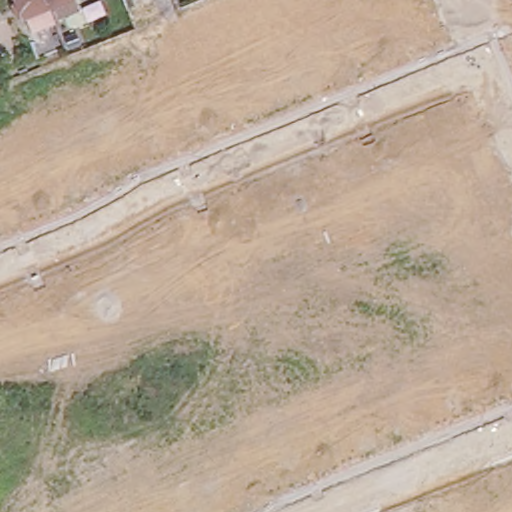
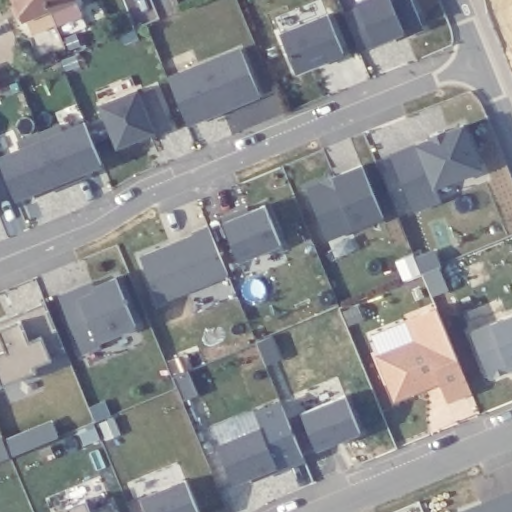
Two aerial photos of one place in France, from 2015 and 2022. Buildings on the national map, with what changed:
unchanged [(24,14),(25,17),(22,19),(15,0),(46,0),(48,4),(24,14)]
unchanged [(46,0),(57,0),(48,4),(46,0)]
new [(397,40),(395,36),(374,44),(373,46),(360,51),(344,10),(356,1),(360,0),(412,0),(424,29),(397,40)]
new [(344,53),(296,73),(279,33),(326,13),(344,53)]
new [(260,96),(188,126),(168,77),(238,46),(260,96)]
new [(84,124),(103,117),(98,102),(138,87),(139,91),(155,86),(172,128),(158,134),(144,139),(143,137),(116,149),(111,135),(93,142),(101,164),(84,171),(87,177),(35,198),(33,193),(17,199),(0,163),(0,155),(82,120),(84,124)]
new [(483,169),(436,188),(441,201),(414,212),(389,151),(414,141),(463,121),(483,169)]
new [(384,215),(328,239),(304,187),(361,164),(384,215)]
new [(281,244),(238,261),(221,220),(264,203),(281,244)]
unchanged [(143,258),(196,237),(196,235),(211,228),(230,275),(162,304),(143,258)]
new [(136,327),(100,342),(101,347),(83,354),(56,293),(89,279),(91,283),(92,284),(115,275),(136,327)]
new [(64,352),(51,358),(33,364),(35,371),(1,385),(0,381),(0,321),(44,303),(64,352)]
new [(473,392),(447,403),(439,383),(394,401),(374,354),(413,340),(404,319),(436,306),(473,392)]
new [(512,313),(512,370),(490,379),(470,330),(489,322),(512,313)]
new [(304,414),(346,398),(361,434),(319,451),(304,414)]
new [(304,459),(253,482),(251,478),(233,484),(216,443),(261,426),(254,409),(280,399),(304,459)]
new [(1,438),(3,442),(53,422),(59,439),(0,463),(0,438),(1,438)]
new [(199,512),(147,512),(139,496),(184,478),(199,512)]
new [(454,511),(512,488),(512,512),(455,512),(454,511)]
new [(69,507),(85,501),(90,512),(71,512),(69,507)]
new [(115,512),(91,512),(112,504),(115,512)]

